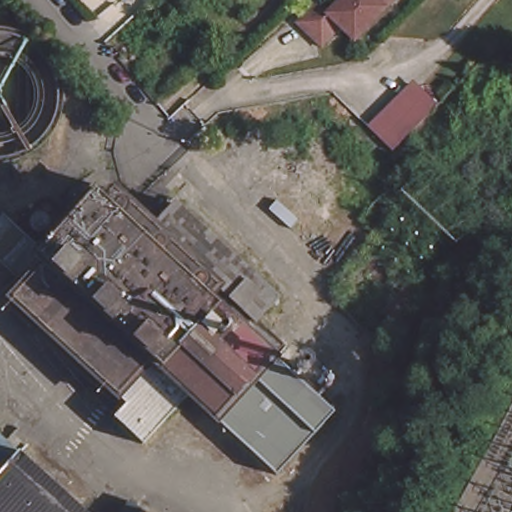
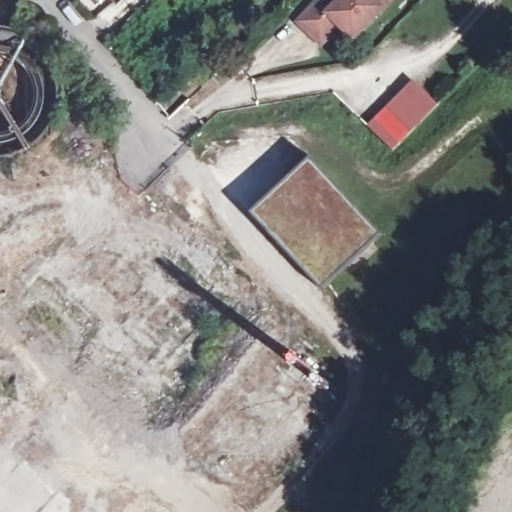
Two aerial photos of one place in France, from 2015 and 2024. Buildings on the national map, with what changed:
unchanged [(341,29),(322,49),(300,26),(319,6),(330,17),(346,0),(396,0),(355,43),(341,29)]
unchanged [(394,149),(386,141),(371,126),(414,82),(437,105),(420,123),(394,149)]
new [(331,178),(291,216),(274,198),(255,215),(254,213),(312,158),(331,178)]
new [(274,198),(291,216),(331,178),(383,232),(325,288),(255,215),(274,198)]
demolished [(40,252),(45,248),(42,245),(92,191),(100,198),(110,187),(155,229),(177,206),(262,287),(277,300),(256,323),(285,350),(275,361),(333,415),(275,477),(189,396),(142,445),(109,415),(121,402),(7,295),(44,256),(40,252)]
demolished [(45,248),(40,252),(20,273),(0,254),(0,218),(7,212),(42,245),(45,248)]
demolished [(427,300),(400,328),(383,310),(393,299),(407,282),(427,300)]
demolished [(88,512),(0,512),(0,472),(20,450),(88,512)]
demolished [(132,500),(146,512),(121,512),(132,500)]

